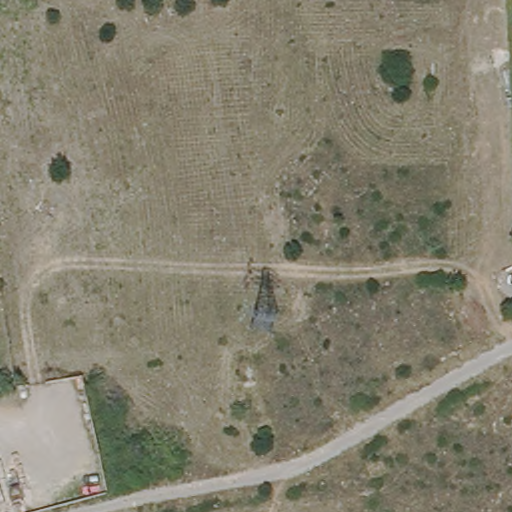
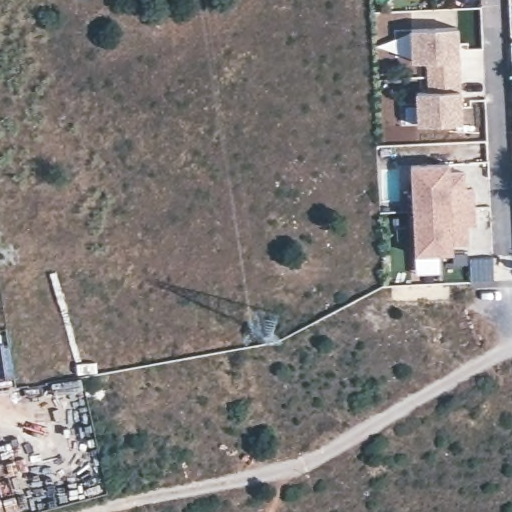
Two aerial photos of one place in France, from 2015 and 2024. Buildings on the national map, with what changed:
new [(457,27),(464,124),(418,126),(416,92),(428,92),(426,60),(412,61),(411,30),(457,27)]
new [(454,167),(454,176),(469,176),(470,193),(479,193),(481,230),(471,231),(472,248),(457,249),(457,257),(419,259),(416,169),(454,167)]
new [(494,260),(495,284),(471,285),(470,260),(494,260)]

